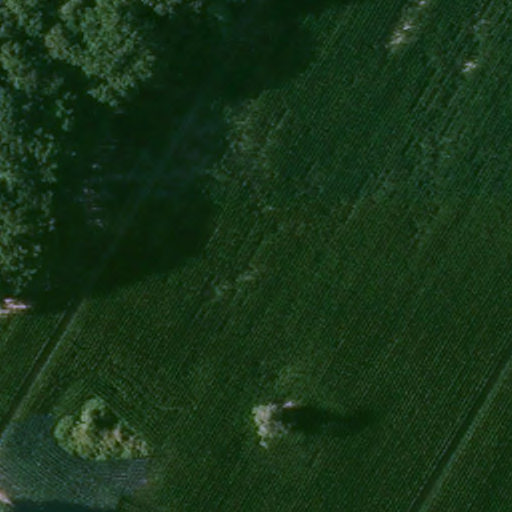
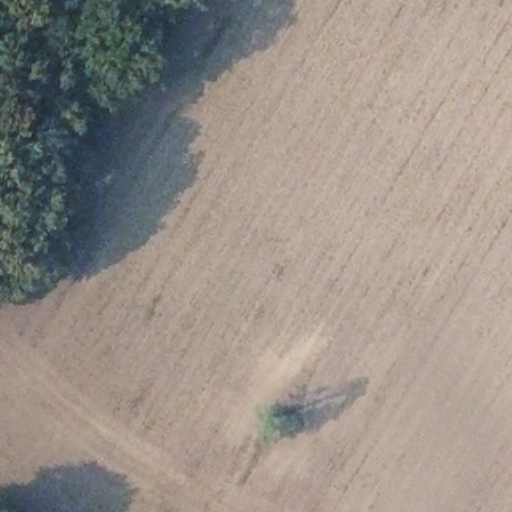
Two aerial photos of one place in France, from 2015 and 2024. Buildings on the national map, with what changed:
unchanged [(326,377),(285,356),(296,340),(334,357),(326,377)]

